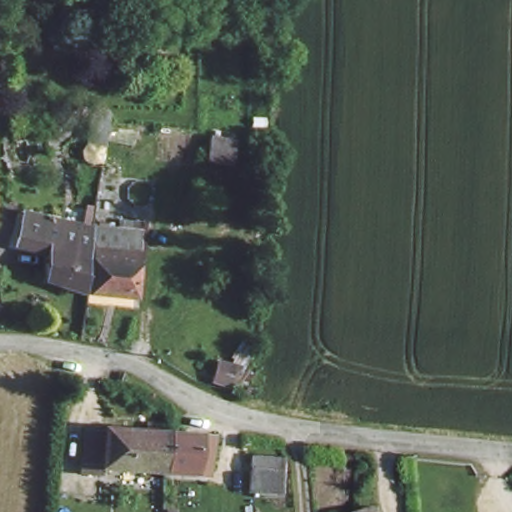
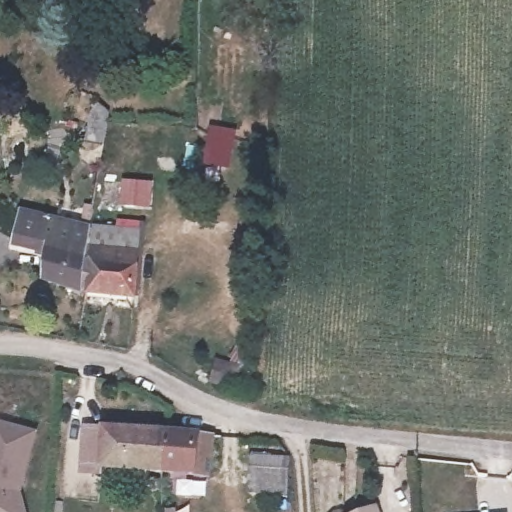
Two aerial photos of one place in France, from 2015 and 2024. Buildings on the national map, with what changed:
unchanged [(202,160),(202,133),(230,135),(232,159),(202,160)]
unchanged [(57,160),(60,141),(82,142),(80,162),(57,160)]
unchanged [(42,282),(44,254),(16,250),(20,214),(99,225),(97,246),(93,292),(42,282)]
unchanged [(106,247),(107,223),(151,225),(148,252),(106,247)]
unchanged [(97,246),(106,247),(148,252),(144,301),(93,292),(97,246)]
unchanged [(214,350),(259,362),(256,397),(206,380),(214,350)]
unchanged [(138,465),(102,462),(102,470),(82,467),(83,421),(170,428),(199,431),(195,469),(168,467),(146,466),(138,465)]
new [(37,432),(20,493),(25,512),(0,512),(0,422),(37,432)]
unchanged [(290,452),(291,496),(254,496),(252,452),(290,452)]
unchanged [(365,512),(372,509),(374,512),(365,512)]

